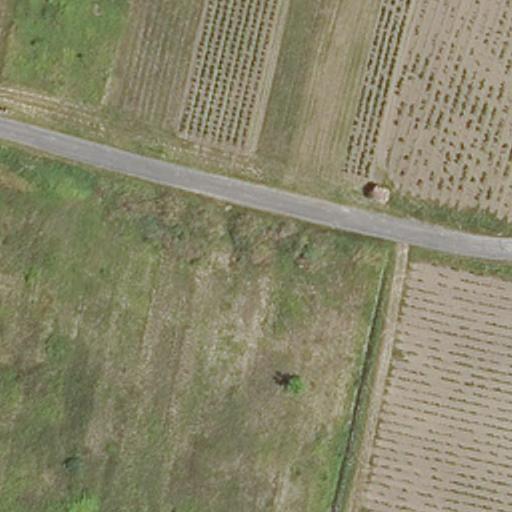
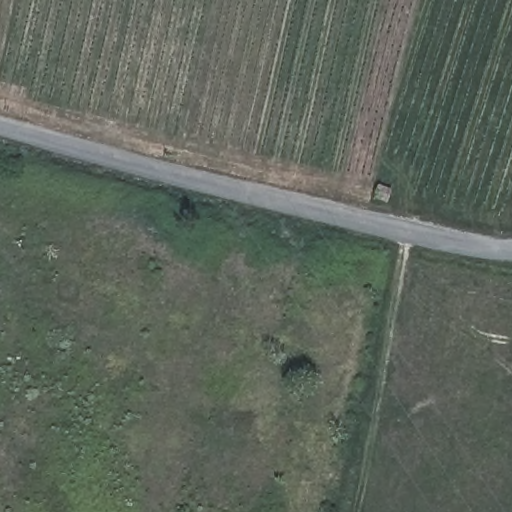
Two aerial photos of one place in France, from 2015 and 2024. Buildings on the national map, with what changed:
unchanged [(376,186),(389,190),(384,207),(371,205),(376,186)]

